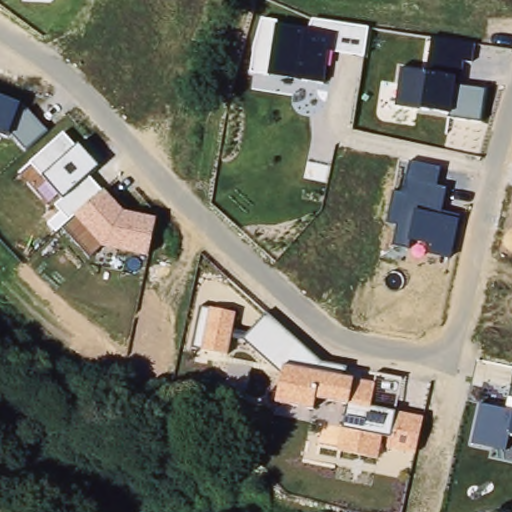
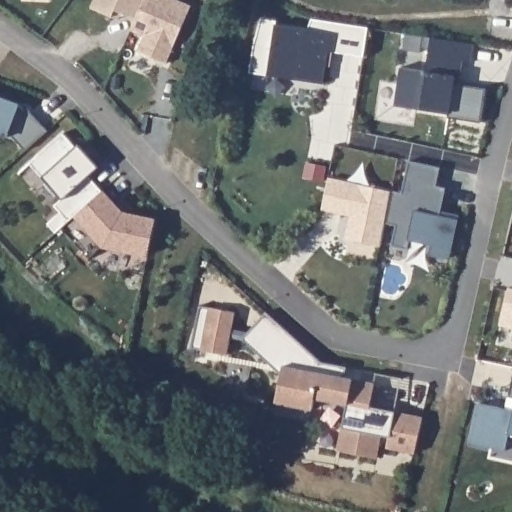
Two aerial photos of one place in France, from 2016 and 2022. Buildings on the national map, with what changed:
new [(145,0),(136,22),(122,16),(119,22),(92,11),(96,0),(145,0)]
new [(145,0),(171,0),(192,9),(167,67),(138,54),(145,39),(131,32),(136,22),(145,0)]
unchanged [(255,47),(262,19),(280,21),(279,25),(307,29),(310,20),(369,27),(364,57),(330,52),(325,83),(269,74),(251,74),(255,47)]
unchanged [(401,67),(426,70),(431,36),(476,44),(473,62),(465,61),(461,86),(486,90),(481,122),(449,117),(450,112),(424,107),(396,106),(401,67)]
unchanged [(10,132),(9,137),(0,134),(0,97),(21,104),(47,132),(26,150),(10,132)]
unchanged [(64,227),(57,232),(49,224),(62,212),(55,205),(63,199),(44,177),(32,161),(65,132),(77,146),(80,145),(98,166),(88,176),(101,192),(105,190),(124,212),(157,220),(149,257),(103,247),(90,257),(64,227)]
unchanged [(393,191),(403,193),(410,162),(440,169),(437,187),(446,189),(442,212),(460,217),(451,258),(430,254),(433,245),(411,240),(409,249),(393,245),(397,224),(386,222),(393,191)]
new [(393,191),(386,222),(380,245),(346,239),(350,216),(323,210),(330,177),(393,191)]
new [(512,293),(512,333),(501,330),(510,292),(512,293)]
unchanged [(193,346),(201,306),(236,313),(229,355),(193,346)]
unchanged [(389,447),(391,437),(382,435),(378,457),(338,448),(343,427),(348,405),(316,398),(315,409),(278,402),(283,376),(245,337),(267,312),(320,362),(346,367),(345,377),(354,379),(375,383),(371,407),(395,412),(423,418),(416,453),(389,447)]
unchanged [(506,409),(509,397),(512,381),(512,436),(509,435),(506,452),(471,443),(480,404),(506,409)]

